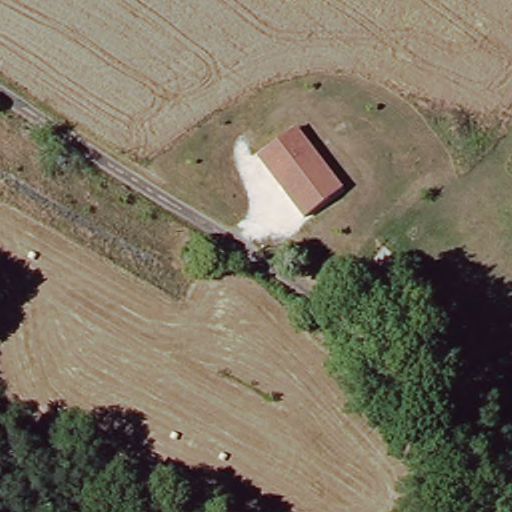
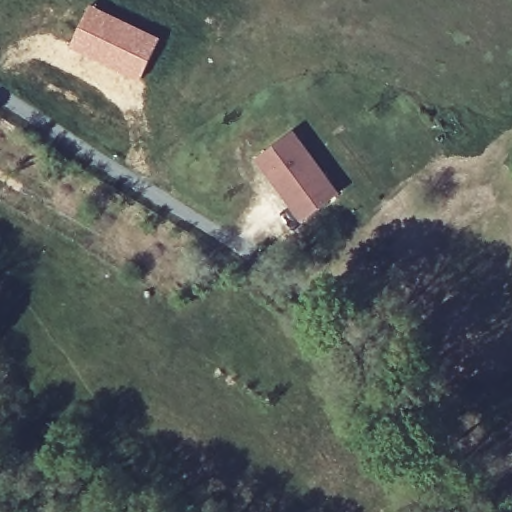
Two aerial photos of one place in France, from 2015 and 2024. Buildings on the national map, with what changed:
new [(90,2),(162,36),(139,84),(69,49),(90,2)]
unchanged [(342,188),(304,217),(259,156),(295,129),(342,188)]

